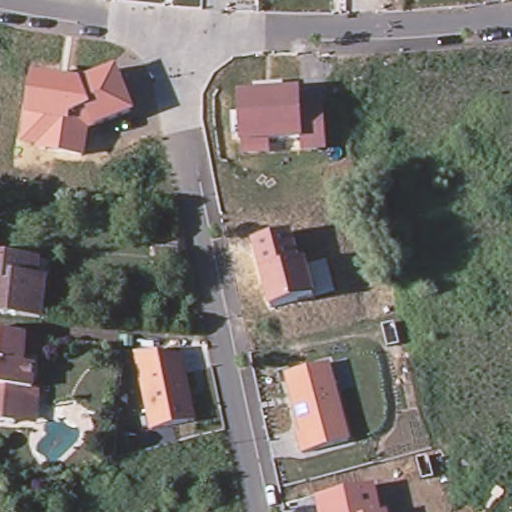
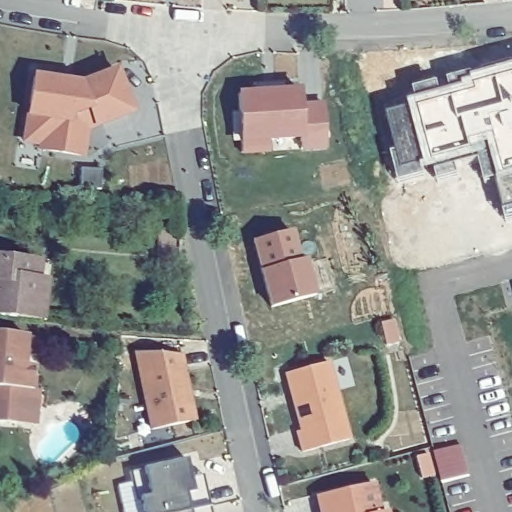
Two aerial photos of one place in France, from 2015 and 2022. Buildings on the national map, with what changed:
new [(407,97),(415,96),(413,86),(435,79),(438,86),(450,85),(447,76),(470,69),(471,72),(512,62),(512,205),(502,207),(496,174),(483,176),(476,154),(453,160),(455,169),(435,175),(435,168),(423,169),(424,174),(398,179),(390,151),(397,149),(388,110),(409,102),(407,97)]
unchanged [(136,114),(88,132),(85,158),(18,148),(31,71),(83,81),(116,66),(136,114)]
unchanged [(327,151),(302,152),(301,144),(272,145),(272,154),(242,155),(240,89),(301,90),(302,102),(324,104),(327,151)]
unchanged [(292,230),(301,260),(306,258),(316,294),(270,309),(251,242),(292,230)]
unchanged [(8,254),(0,253),(0,242),(9,244),(8,250),(8,254)]
unchanged [(155,272),(156,254),(180,256),(182,274),(155,272)]
unchanged [(27,265),(40,266),(38,284),(47,285),(43,323),(0,318),(0,262),(27,265)]
new [(396,327),(402,349),(390,352),(384,329),(396,327)]
unchanged [(36,427),(16,426),(0,425),(0,336),(3,337),(26,339),(25,346),(24,368),(35,369),(33,393),(40,393),(36,427)]
unchanged [(152,430),(135,355),(183,352),(199,419),(152,430)]
unchanged [(308,453),(285,374),(329,362),(351,440),(308,453)]
new [(463,451),(471,481),(444,489),(435,458),(463,451)]
new [(143,512),(141,500),(141,497),(137,498),(132,471),(145,467),(192,458),(195,477),(204,475),(211,512),(143,512)]
unchanged [(375,485),(381,512),(320,512),(317,497),(375,485)]

